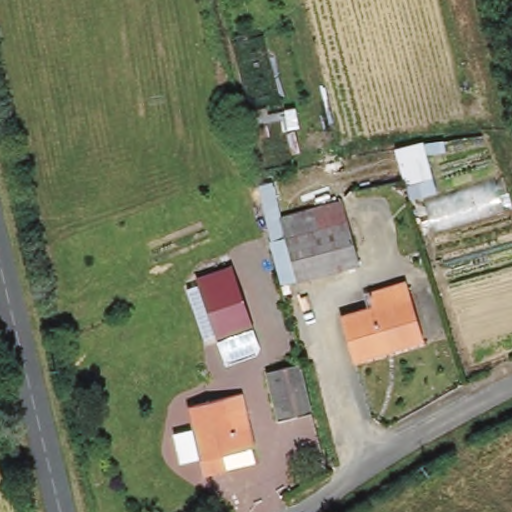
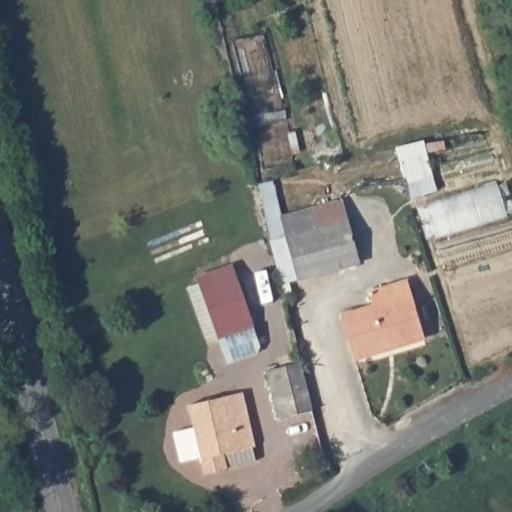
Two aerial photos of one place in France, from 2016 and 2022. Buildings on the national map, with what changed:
unchanged [(430,179),(435,195),(421,199),(416,184),(430,179)]
unchanged [(271,240),(261,184),(275,182),(285,213),(316,208),(318,208),(342,202),(358,263),(298,279),(294,279),(284,284),(271,240)]
unchanged [(239,267),(256,330),(218,339),(203,276),(239,267)]
unchanged [(378,309),(374,295),(410,284),(429,340),(357,362),(343,319),(378,309)]
unchanged [(304,362),(316,414),(282,420),(269,368),(304,362)]
unchanged [(246,381),(258,450),(201,459),(189,390),(246,381)]

